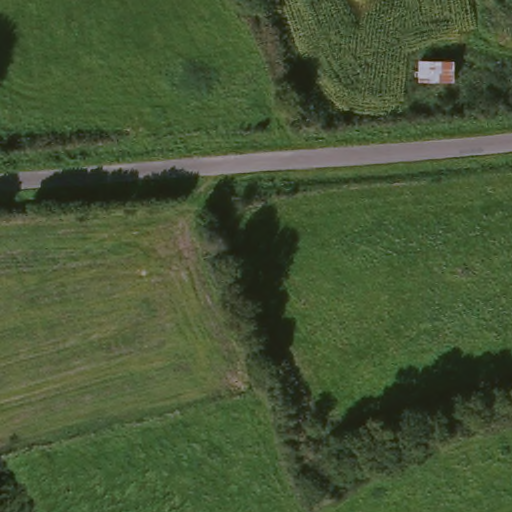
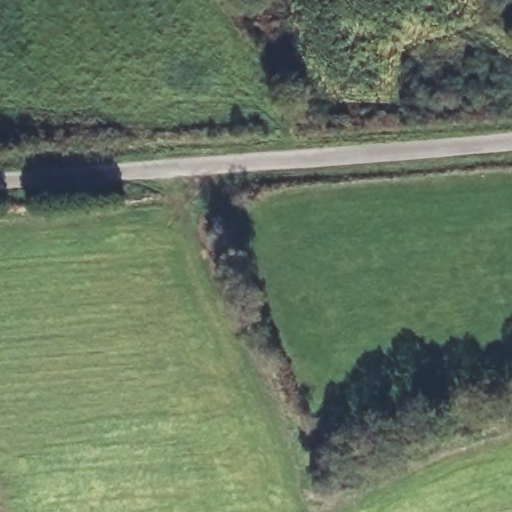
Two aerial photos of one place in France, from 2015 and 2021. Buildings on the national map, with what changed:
unchanged [(419,84),(419,57),(459,55),(458,83),(419,84)]

